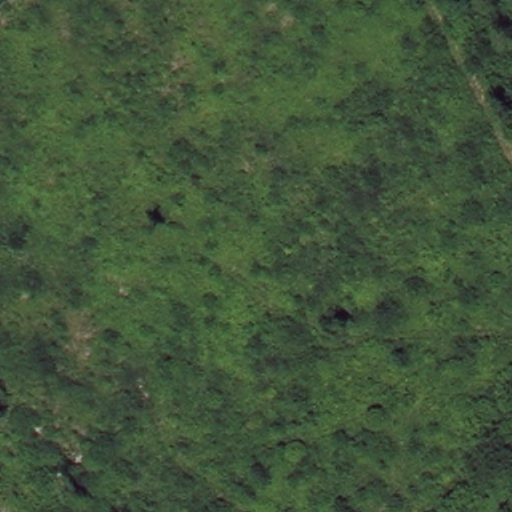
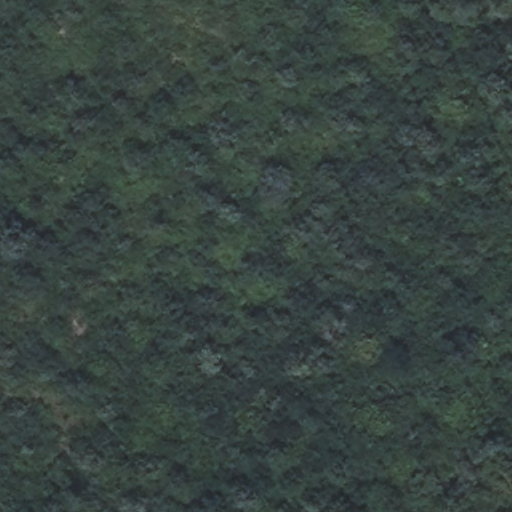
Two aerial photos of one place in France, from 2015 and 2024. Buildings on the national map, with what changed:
[]

